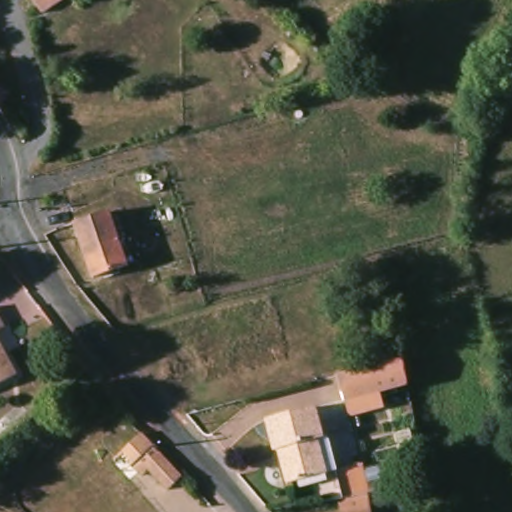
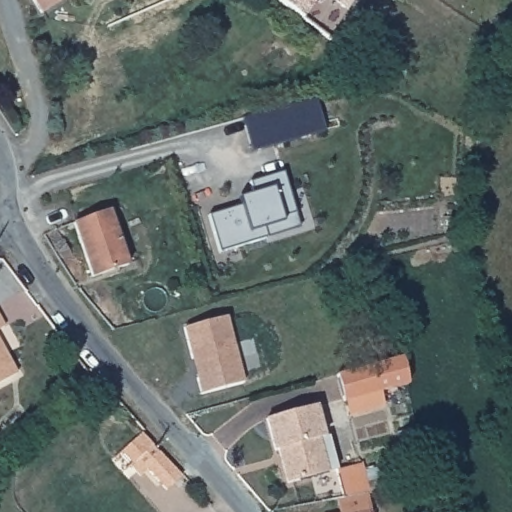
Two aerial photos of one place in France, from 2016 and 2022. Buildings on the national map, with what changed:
unchanged [(41,13),(33,0),(60,0),(41,13)]
new [(317,98),(326,132),(254,152),(244,118),(317,98)]
new [(268,239),(219,252),(209,215),(256,202),(250,182),(284,173),(296,216),(300,231),(268,239)]
unchanged [(107,211),(125,265),(89,277),(71,224),(107,211)]
new [(189,328),(231,318),(247,383),(205,394),(201,378),(196,359),(189,328)]
unchanged [(0,328),(0,323),(2,327),(0,328)]
unchanged [(0,348),(14,375),(0,382),(0,348)]
unchanged [(352,416),(349,401),(342,375),(407,358),(412,385),(384,392),(388,407),(352,416)]
unchanged [(344,499),(336,472),(292,484),(283,450),(279,451),(270,419),(319,406),(327,437),(331,436),(340,471),(366,464),(367,468),(379,465),(385,491),(374,493),(353,498),(344,499)]
unchanged [(141,472),(135,465),(156,446),(164,454),(164,453),(187,477),(172,490),(152,469),(144,476),(141,472)]
unchanged [(375,512),(357,512),(374,509),(375,512)]

